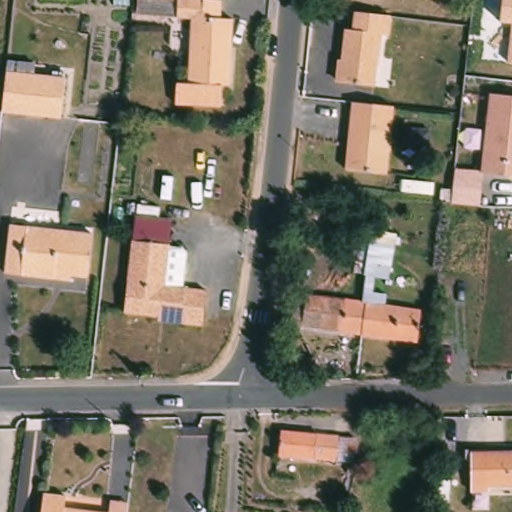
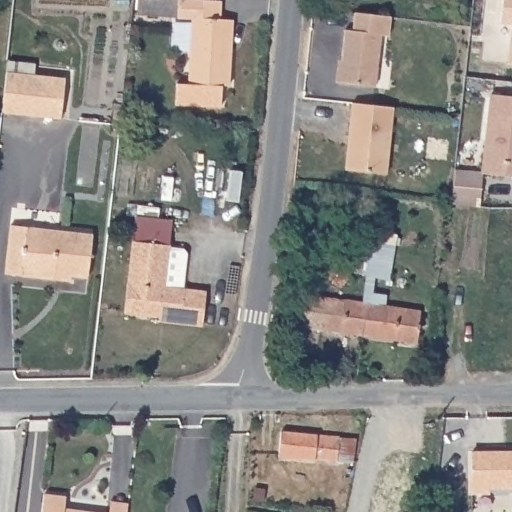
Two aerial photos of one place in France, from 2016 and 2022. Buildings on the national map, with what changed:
unchanged [(235,26),(230,92),(224,91),(222,112),(177,109),(179,88),(191,89),(195,25),(177,23),(177,21),(137,19),(138,1),(135,1),(135,0),(178,0),(178,3),(224,7),(223,25),(235,26)]
unchanged [(510,22),(500,22),(502,0),(512,0),(512,64),(506,64),(510,22)]
unchanged [(363,11),(392,14),(389,32),(381,32),(375,84),(339,79),(346,27),(353,27),(356,10),(363,11)]
unchanged [(63,80),(59,120),(0,114),(0,109),(4,74),(63,80)]
unchanged [(489,96),(512,98),(512,178),(481,175),(489,96)]
unchanged [(355,101),(396,106),(389,172),(347,168),(355,101)]
unchanged [(467,204),(450,202),(452,182),(469,184),(467,204)]
unchanged [(53,279),(4,273),(10,226),(92,234),(88,277),(69,274),(68,281),(53,279)]
unchanged [(370,230),(369,241),(389,245),(384,277),(365,274),(353,272),(360,228),(370,230)]
unchanged [(154,321),(120,317),(127,245),(165,250),(165,252),(179,254),(182,257),(177,292),(201,295),(197,331),(174,327),(154,325),(154,321)]
unchanged [(361,307),(363,296),(374,298),(373,308),(421,315),(417,346),(361,339),(301,331),(301,330),(289,327),(295,300),(305,301),(305,299),(361,307)]
unchanged [(348,462),(338,462),(309,457),(309,460),(274,456),(276,431),(341,437),(351,438),(348,462)]
unchanged [(512,488),(485,488),(485,493),(468,493),(467,453),(512,452),(512,488)]
unchanged [(65,497),(64,512),(41,512),(43,494),(65,497)]
unchanged [(78,510),(97,512),(78,512),(78,510)]

